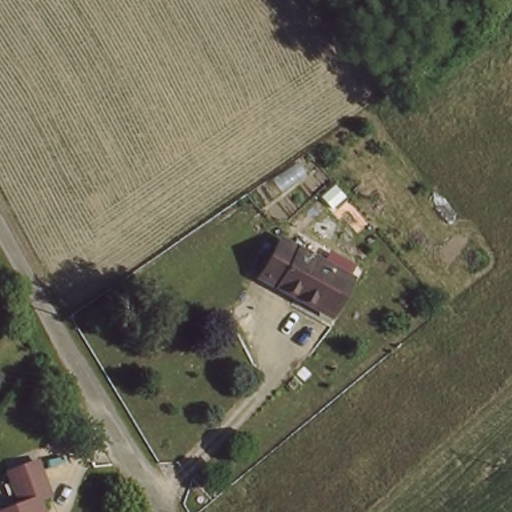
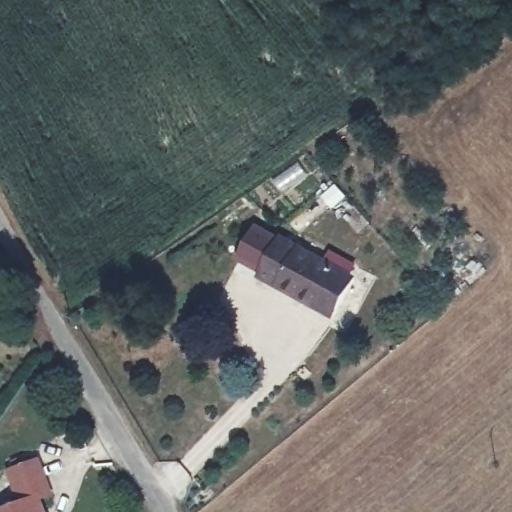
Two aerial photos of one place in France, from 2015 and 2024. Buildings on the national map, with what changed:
unchanged [(315,310),(308,323),(284,310),(293,294),(268,280),(288,244),(347,276),(331,305),(326,315),(315,310)]
unchanged [(6,466),(35,455),(48,489),(32,495),(38,509),(35,510),(35,512),(0,512),(0,507),(20,499),(6,466)]

